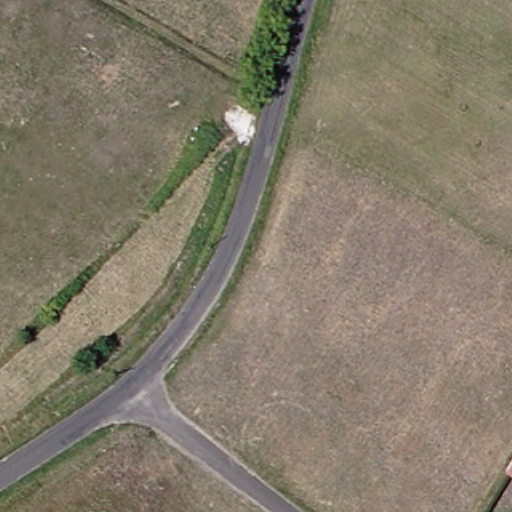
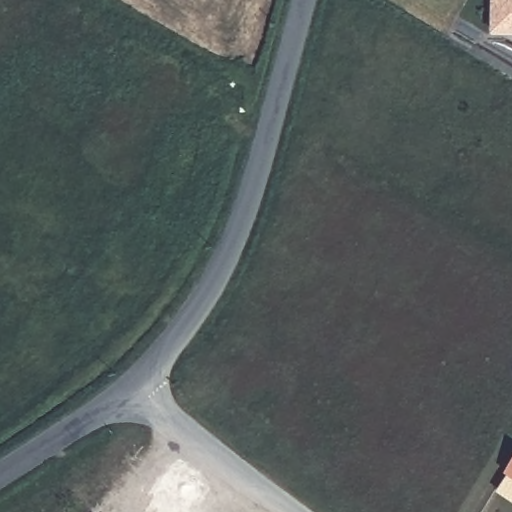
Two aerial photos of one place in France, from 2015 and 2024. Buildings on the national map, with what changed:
new [(494,0),(512,0),(512,31),(494,31),(494,0)]
unchanged [(506,471),(512,461),(512,475),(506,471)]

